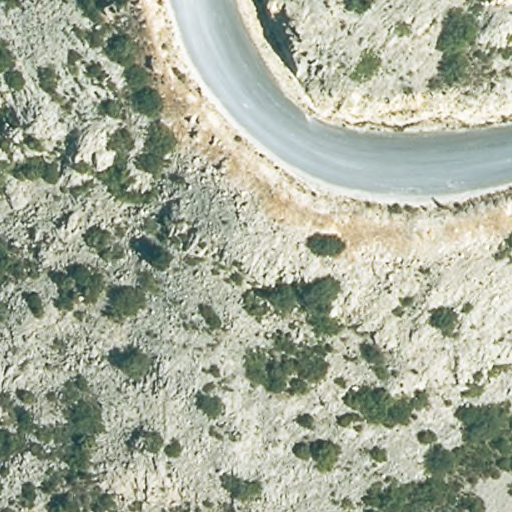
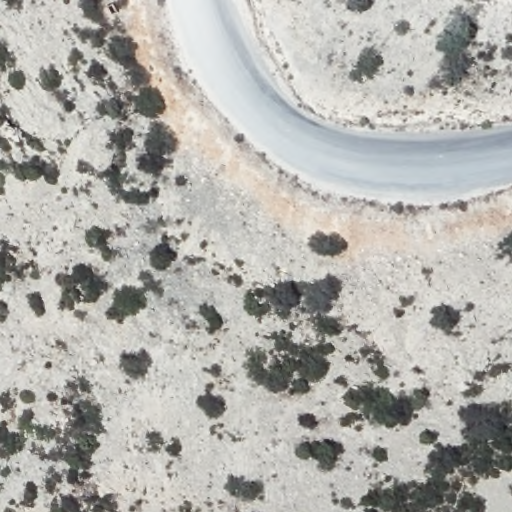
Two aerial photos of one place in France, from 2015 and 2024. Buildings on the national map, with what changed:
[]

